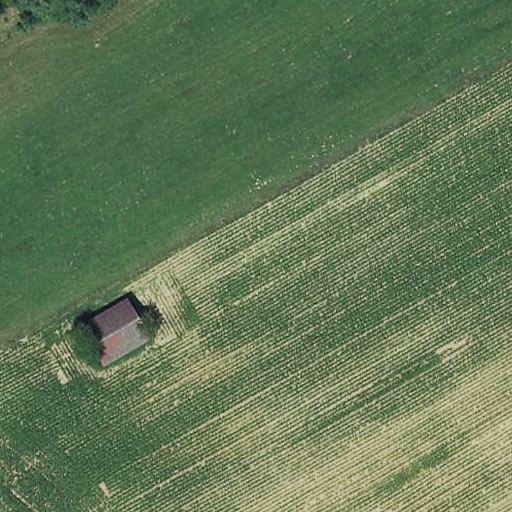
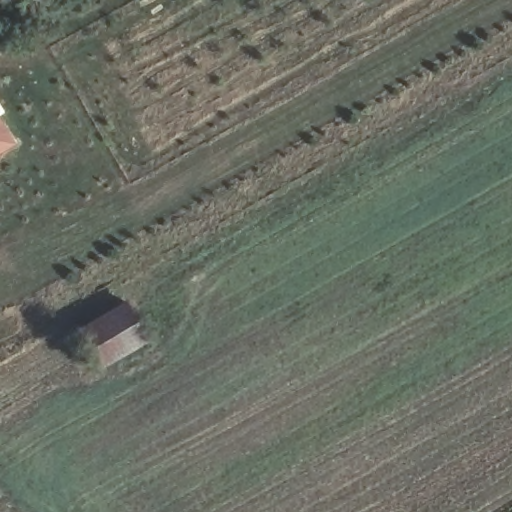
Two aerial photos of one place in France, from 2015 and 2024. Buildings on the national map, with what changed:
new [(17,142),(0,152),(0,117),(1,116),(17,142)]
unchanged [(102,366),(80,329),(124,302),(147,339),(102,366)]

